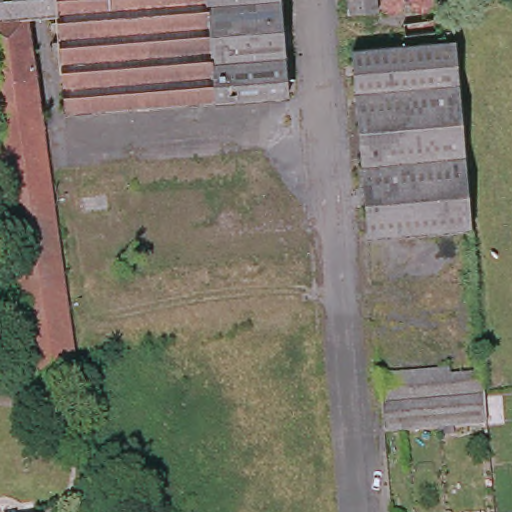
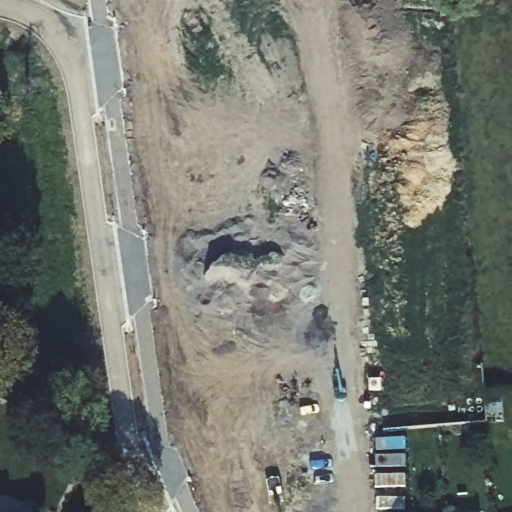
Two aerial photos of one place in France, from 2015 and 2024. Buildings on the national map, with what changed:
demolished [(68,114),(63,55),(58,56),(55,23),(61,23),(60,14),(31,16),(84,390),(35,396),(8,203),(0,143),(0,0),(284,0),(291,96),(68,114)]
demolished [(396,0),(398,12),(369,15),(368,0),(396,0)]
demolished [(423,1),(422,2),(422,3),(422,4),(421,5),(420,6),(419,6),(419,7),(418,8),(417,9),(416,9),(415,9),(414,10),(412,10),(411,10),(410,10),(409,9),(408,9),(407,9),(406,8),(405,7),(404,6),(404,5),(403,5),(403,4),(402,3),(402,2),(402,0),(423,0),(423,1)]
demolished [(442,9),(441,10),(440,10),(439,9),(438,9),(436,9),(435,8),(434,7),(433,7),(432,6),(432,5),(431,5),(430,4),(429,2),(429,1),(429,0),(452,0),(452,1),(452,2),(451,4),(450,5),(449,5),(449,6),(448,7),(447,7),(446,8),(445,9),(444,9),(442,9)]
demolished [(470,216),(471,230),(366,239),(352,50),(456,41),(470,216)]
demolished [(379,377),(483,368),(484,385),(380,393),(379,377)]
demolished [(484,385),(484,395),(487,426),(439,430),(408,432),(389,434),(384,435),(380,393),(484,385)]

